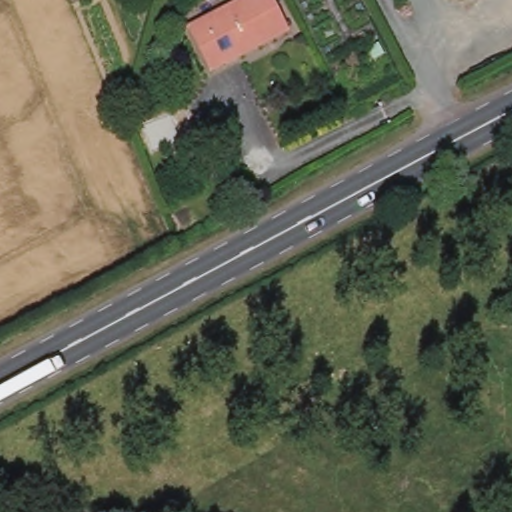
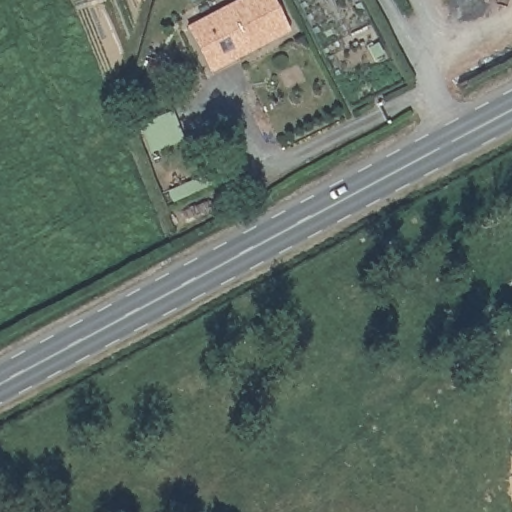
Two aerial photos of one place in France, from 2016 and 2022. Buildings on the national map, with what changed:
unchanged [(226,65),(210,72),(187,30),(246,0),(272,0),(288,31),(236,59),(233,52),(222,58),(226,65)]

